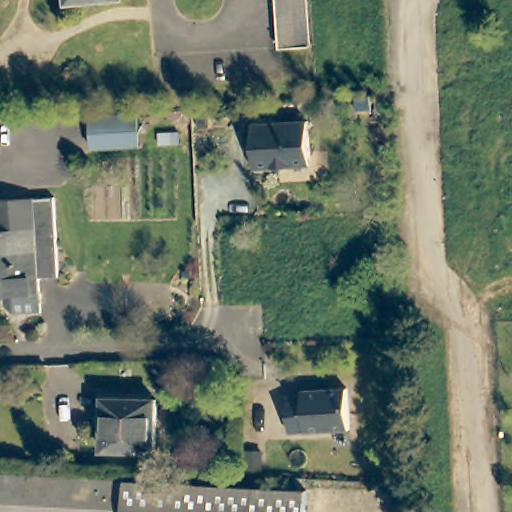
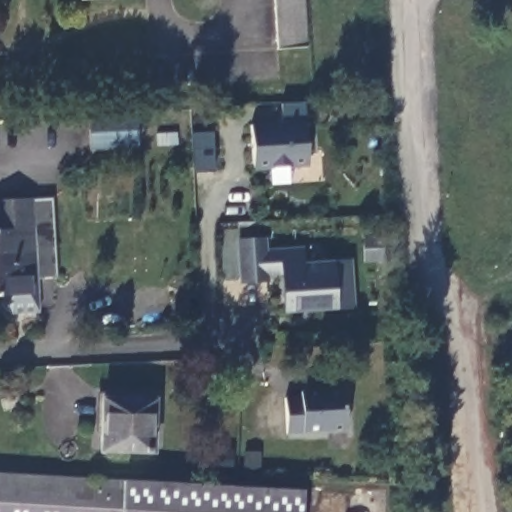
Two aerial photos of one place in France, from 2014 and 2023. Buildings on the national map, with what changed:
unchanged [(276,0),(305,0),(308,52),(278,54),(276,0)]
unchanged [(130,110),(131,141),(126,141),(83,144),(82,113),(125,111),(130,110)]
unchanged [(308,167),(253,170),(250,126),(305,123),(308,167)]
unchanged [(45,197),(50,277),(30,278),(25,198),(45,197)]
unchanged [(4,314),(0,311),(0,201),(25,198),(30,278),(31,313),(4,314)]
new [(237,237),(268,236),(269,249),(305,247),(306,261),(353,257),(357,309),(284,312),(278,283),(240,284),(237,237)]
unchanged [(347,431),(287,434),(285,399),(305,398),(305,392),(345,390),(347,431)]
unchanged [(147,400),(147,453),(95,452),(96,400),(147,400)]
unchanged [(297,493),(296,512),(0,512),(0,473),(297,493)]

